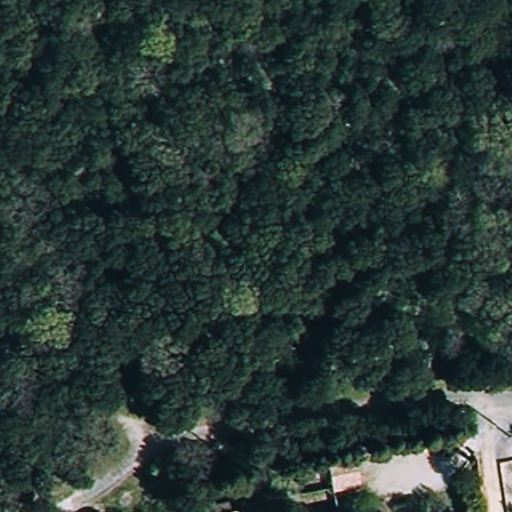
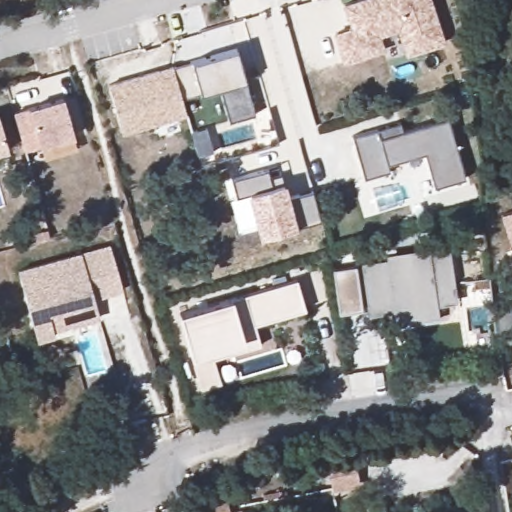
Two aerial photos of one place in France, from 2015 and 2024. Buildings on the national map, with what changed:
new [(350,27),(343,5),(358,0),(431,0),(446,43),(406,57),(397,31),(380,37),(385,50),(344,65),(333,33),(350,27)]
new [(237,50),(256,116),(229,123),(219,90),(182,101),(173,69),(237,50)]
new [(173,69),(182,101),(186,115),(122,134),(109,87),(173,69)]
new [(63,99),(73,136),(24,150),(14,113),(63,99)]
new [(399,124),(402,131),(447,120),(464,177),(434,186),(425,154),(386,164),(388,171),(363,179),(352,138),(399,124)]
new [(0,152),(0,124),(8,149),(0,152)]
new [(198,157),(196,149),(191,133),(207,128),(211,145),(214,153),(198,157)]
new [(259,236),(247,195),(236,198),(231,178),(267,169),(271,184),(284,180),(289,195),(312,188),(320,217),(296,223),(297,225),(259,236)]
new [(502,215),(512,212),(512,251),(502,215)]
new [(123,292),(92,299),(99,319),(54,332),(54,337),(37,343),(18,269),(109,243),(123,292)]
new [(455,302),(436,304),(437,315),(394,322),(392,313),(370,317),(362,263),(387,260),(386,254),(429,249),(428,245),(449,244),(455,302)]
new [(488,280),(489,290),(473,292),(472,283),(488,280)]
new [(296,281),(305,311),(255,326),(260,345),(194,364),(179,315),(296,281)]
unchanged [(227,501),(229,511),(240,509),(241,512),(213,512),(211,504),(227,501)]
unchanged [(382,501),(384,512),(369,512),(367,505),(382,501)]

